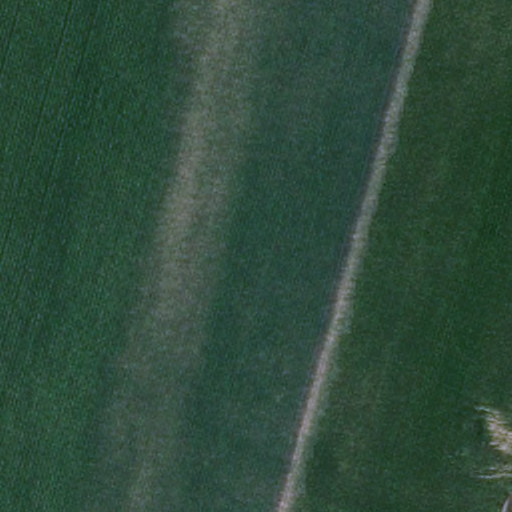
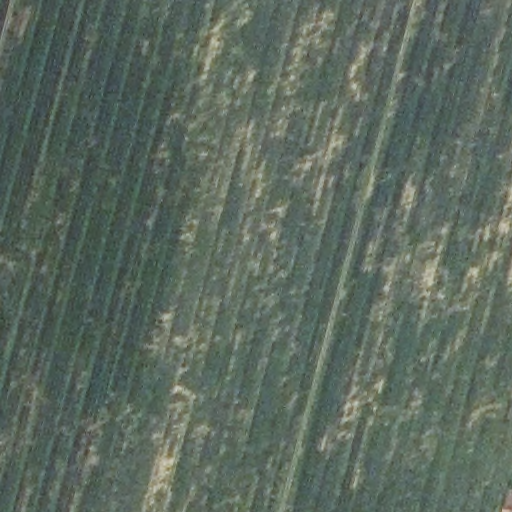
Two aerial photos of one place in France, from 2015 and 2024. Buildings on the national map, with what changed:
[]

